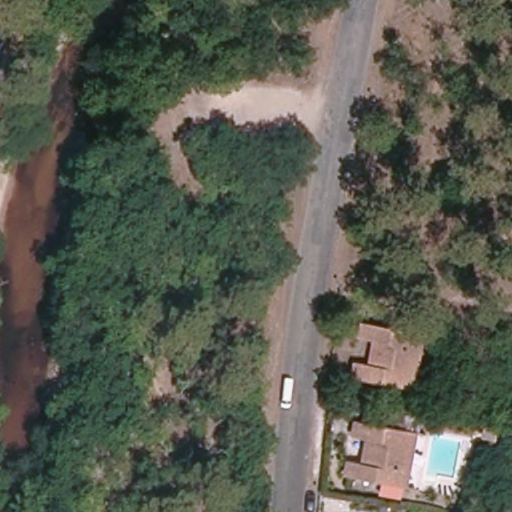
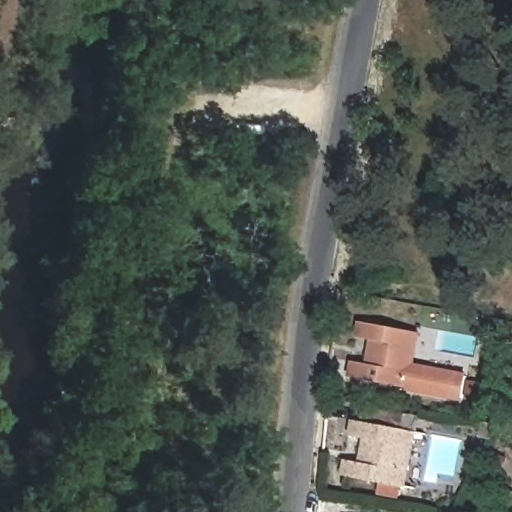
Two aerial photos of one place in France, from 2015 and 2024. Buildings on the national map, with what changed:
unchanged [(356,362),(370,365),(372,353),(378,355),(381,342),(360,338),(363,322),(420,333),(414,363),(410,388),(353,378),(356,362)]
new [(410,388),(414,363),(469,373),(463,402),(409,392),(410,388)]
unchanged [(349,461),(369,465),(372,452),(366,451),(368,440),(353,437),(357,421),(413,432),(403,487),(346,477),(349,461)]

